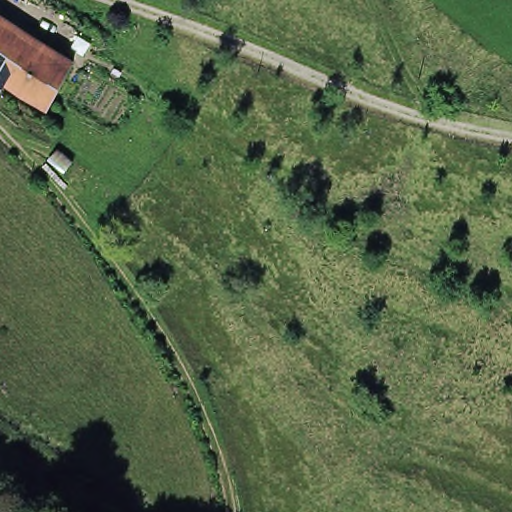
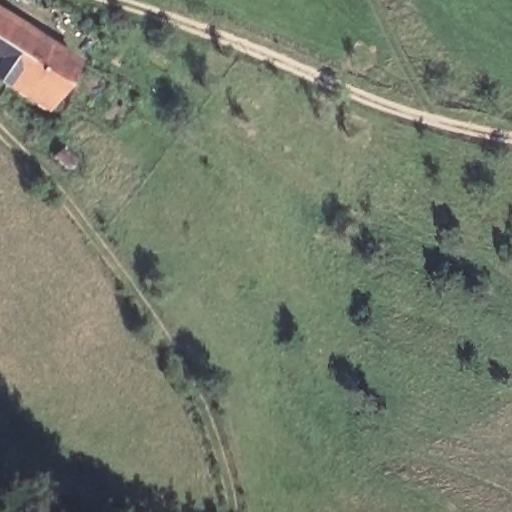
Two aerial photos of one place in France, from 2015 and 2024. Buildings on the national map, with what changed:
unchanged [(0,7),(45,36),(15,84),(0,74),(0,7)]
unchanged [(15,84),(45,36),(90,66),(62,111),(15,84)]

